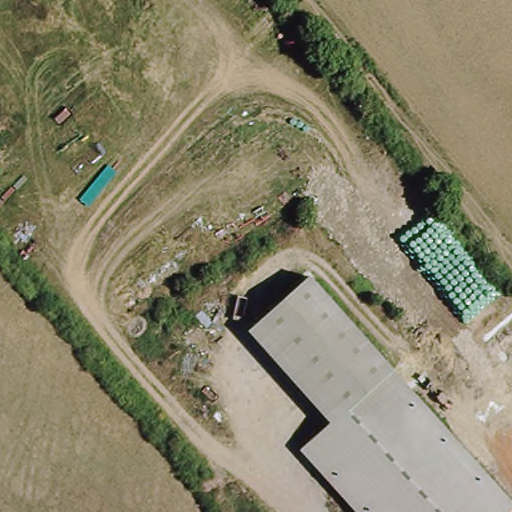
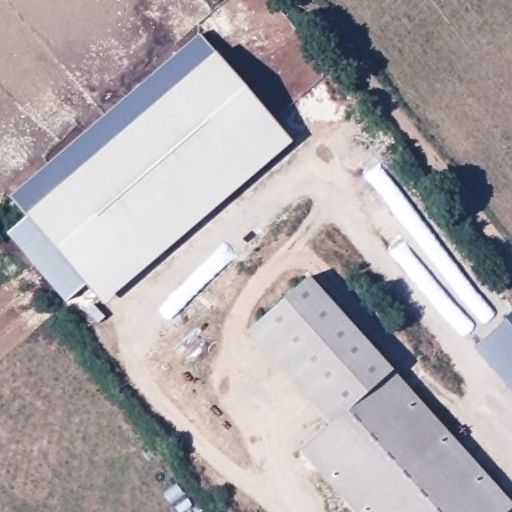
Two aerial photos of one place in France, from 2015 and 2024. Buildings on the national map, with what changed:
new [(216,52),(293,141),(102,304),(84,282),(65,300),(7,232),(25,214),(9,195),(199,31),(216,52)]
unchanged [(512,506),(512,512),(346,512),(299,457),(331,433),(248,338),(311,282),(512,506)]
new [(512,310),(512,393),(472,347),(512,310)]

